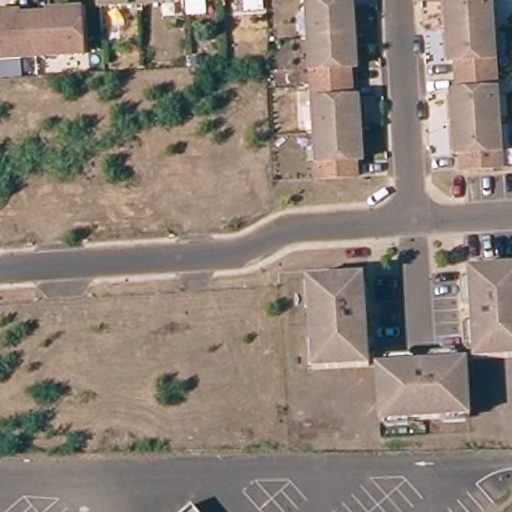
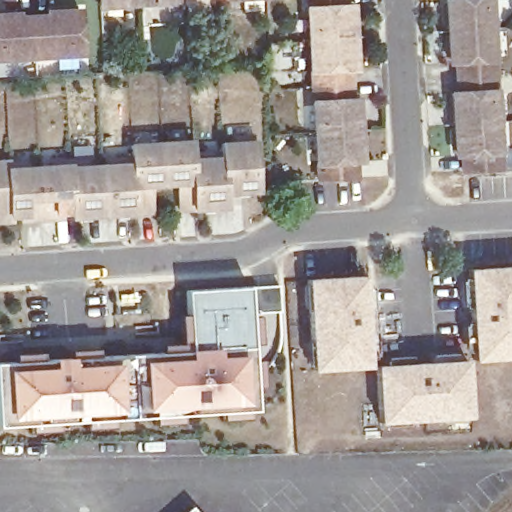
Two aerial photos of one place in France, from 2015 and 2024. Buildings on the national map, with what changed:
unchanged [(146,4),(105,6),(105,0),(146,0),(146,4)]
unchanged [(187,1),(146,4),(146,0),(187,0),(187,1)]
unchanged [(187,1),(187,0),(204,0),(187,1)]
unchanged [(363,36),(357,37),(319,39),(316,0),(355,0),(355,5),(361,5),(363,36)]
unchanged [(492,27),(449,30),(447,0),(491,0),(492,27)]
unchanged [(87,54),(40,57),(38,16),(53,15),(53,12),(85,10),(87,54)]
unchanged [(40,57),(0,60),(0,15),(22,14),(22,17),(38,16),(40,57)]
unchanged [(495,74),(457,77),(456,61),(450,61),(449,30),(492,27),(495,74)]
unchanged [(363,36),(365,68),(359,68),(360,84),(352,84),(322,86),(319,39),(357,37),(363,36)]
unchanged [(498,121),(454,123),(452,93),(458,92),(457,77),(495,74),(498,121)]
unchanged [(369,130),(325,132),(322,86),(352,84),(360,84),(361,99),(367,99),(369,130)]
unchanged [(501,167),(463,170),(462,154),(456,154),(454,123),(498,121),(501,167)]
unchanged [(366,177),(328,179),(325,132),(369,130),(371,160),(365,161),(366,177)]
new [(12,157),(12,165),(72,161),(73,164),(130,160),(128,142),(193,138),(194,156),(219,154),(219,140),(257,138),(261,191),(227,194),(228,209),(196,211),(195,207),(178,210),(176,186),(150,188),(152,213),(138,215),(71,219),(70,215),(61,217),(60,220),(25,222),(24,218),(13,219),(14,224),(0,225),(0,158),(12,157)]
unchanged [(469,263),(512,260),(512,351),(475,353),(469,263)]
unchanged [(370,360),(314,364),(308,273),(364,270),(370,360)]
new [(249,286),(279,284),(280,307),(251,309),(258,408),(0,428),(0,362),(190,348),(186,289),(249,286)]
unchanged [(472,410),(381,416),(377,360),(468,354),(472,410)]
unchanged [(205,512),(201,512),(203,510),(205,512)]

